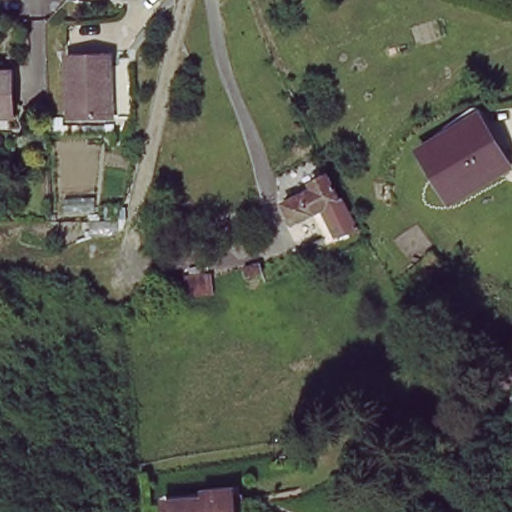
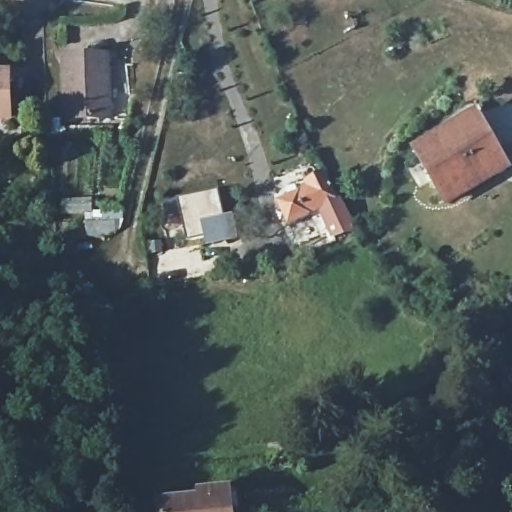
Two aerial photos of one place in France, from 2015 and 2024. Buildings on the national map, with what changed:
unchanged [(65,115),(65,61),(106,61),(106,92),(106,115),(98,115),(65,115)]
unchanged [(0,77),(3,77),(0,120),(0,77)]
unchanged [(413,151),(473,117),(499,159),(504,167),(444,201),(416,155),(413,151)]
unchanged [(366,205),(326,225),(313,200),(296,208),(288,191),(319,176),(316,170),(335,161),(347,184),(353,181),(366,205)]
new [(240,238),(205,246),(203,239),(188,242),(177,199),(217,189),(223,216),(233,213),(240,238)]
new [(123,215),(121,235),(85,237),(83,215),(123,215)]
unchanged [(496,401),(512,390),(512,425),(500,406),(496,401)]
unchanged [(197,505),(196,499),(225,496),(226,508),(226,512),(166,512),(165,508),(187,506),(197,505)]

